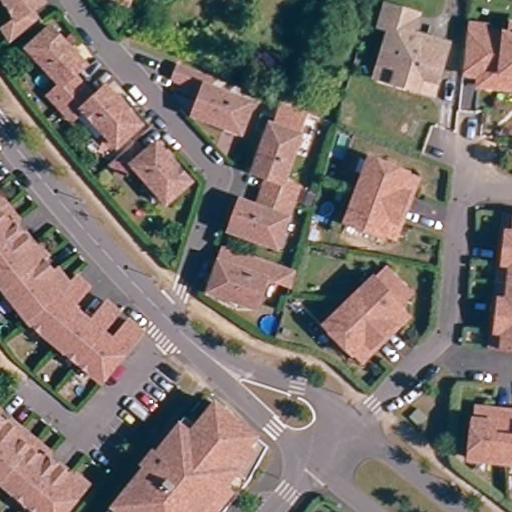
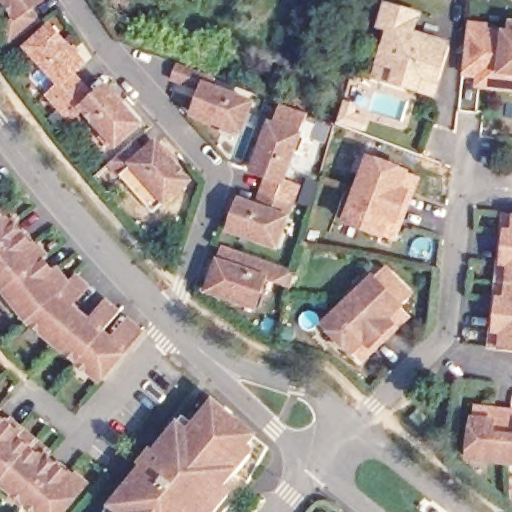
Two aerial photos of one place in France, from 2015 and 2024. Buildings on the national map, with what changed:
unchanged [(22,20),(9,29),(0,17),(0,14),(13,6),(9,0),(28,0),(35,11),(22,20)]
unchanged [(391,74),(373,69),(378,55),(388,20),(378,17),(383,0),(395,0),(414,6),(409,25),(444,36),(432,80),(429,86),(414,81),(391,74)]
unchanged [(503,74),(481,72),(482,62),(464,61),(469,18),(469,16),(489,18),(488,24),(512,27),(512,76),(503,74)]
unchanged [(40,94),(53,82),(20,46),(43,25),(76,62),(65,73),(75,84),(52,106),(40,94)]
unchanged [(238,125),(191,107),(199,85),(170,74),(177,58),(213,71),(213,72),(209,81),(249,96),(238,125)]
unchanged [(132,123),(109,144),(76,107),(64,119),(52,106),(75,84),(86,96),(98,86),(132,123)]
unchanged [(269,120),(275,100),(288,105),(303,110),(295,130),(279,176),(295,182),(289,200),(258,189),(264,171),(250,166),(267,120),(269,120)]
unchanged [(182,179),(158,200),(126,163),(114,174),(102,162),(126,140),(137,152),(149,142),(182,179)]
unchanged [(404,201),(397,221),(392,233),(344,216),(356,183),(368,151),(415,169),(416,169),(411,182),(406,195),(404,201)]
unchanged [(273,242),(226,225),(237,196),(254,202),(258,189),(289,200),(273,242)]
unchanged [(10,210),(8,212),(20,228),(33,245),(36,243),(44,252),(40,254),(54,271),(57,269),(65,278),(72,271),(72,270),(84,280),(69,299),(68,300),(78,309),(88,317),(95,308),(104,297),(116,307),(111,313),(99,327),(110,335),(124,318),(126,315),(133,321),(139,325),(98,375),(98,374),(75,356),(54,338),(25,314),(2,285),(0,283),(0,197),(2,199),(10,210)]
unchanged [(494,287),(495,274),(497,260),(499,240),(501,219),(502,206),(512,207),(512,345),(488,342),(489,328),(492,308),(494,287)]
unchanged [(208,288),(218,259),(223,244),(242,250),(294,268),(289,285),(264,276),(255,304),(208,288)]
unchanged [(369,346),(359,356),(323,318),(343,299),(372,271),(374,273),(384,262),(408,286),(397,297),(408,308),(398,317),(382,333),(369,346)]
unchanged [(116,509),(123,501),(144,473),(136,466),(166,428),(175,435),(187,419),(203,400),(211,406),(220,395),(260,426),(252,438),(262,446),(247,466),(211,512),(119,512),(116,509)]
unchanged [(508,404),(512,404),(512,455),(502,454),(468,451),(473,400),(487,402),(508,404)]
unchanged [(416,411),(426,420),(418,428),(409,419),(416,411)]
unchanged [(19,431),(22,428),(32,437),(42,445),(39,447),(55,461),(71,474),(74,471),(84,479),(57,512),(40,512),(24,499),(0,479),(0,415),(4,418),(19,431)]

